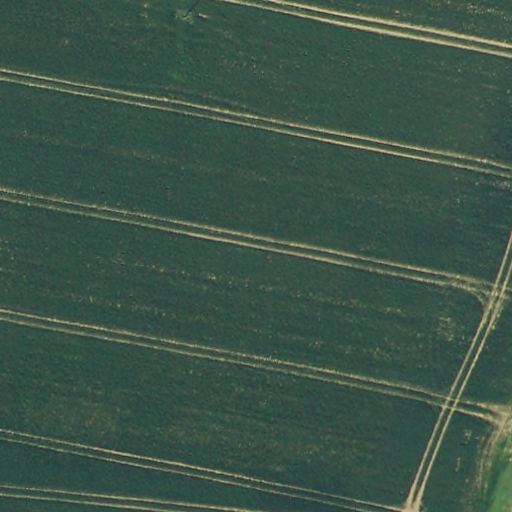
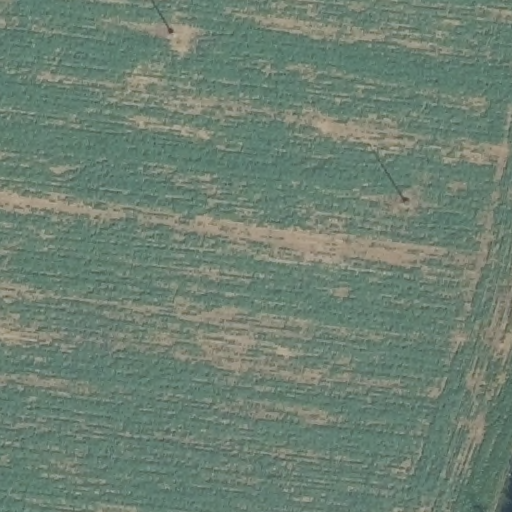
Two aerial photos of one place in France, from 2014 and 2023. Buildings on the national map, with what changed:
[]

